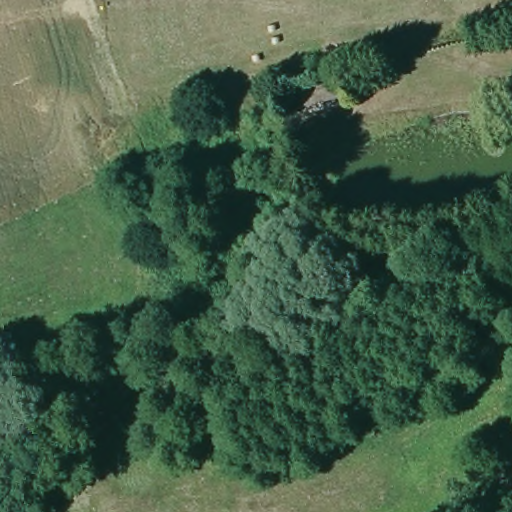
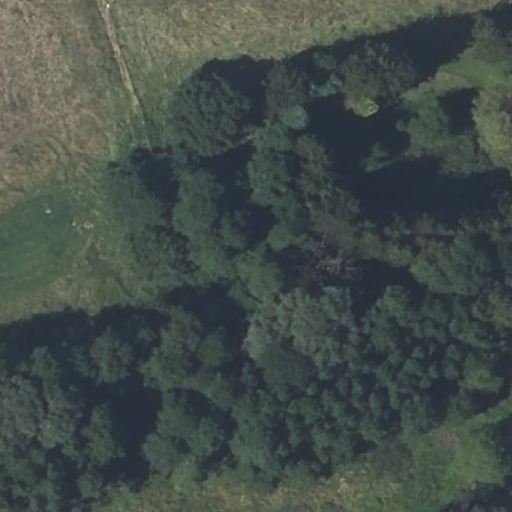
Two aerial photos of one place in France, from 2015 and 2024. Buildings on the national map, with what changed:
unchanged [(283,92),(342,79),(347,100),(294,114),(283,92)]

